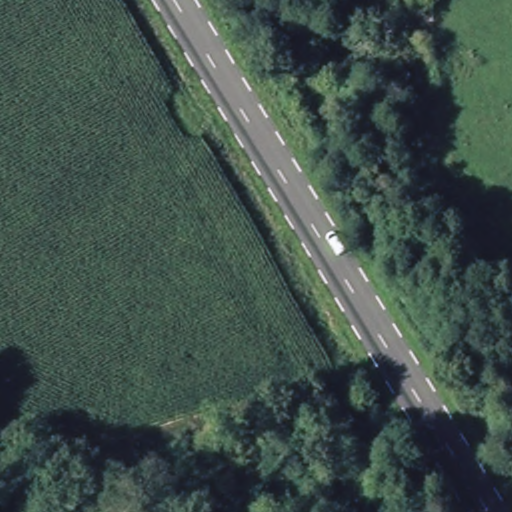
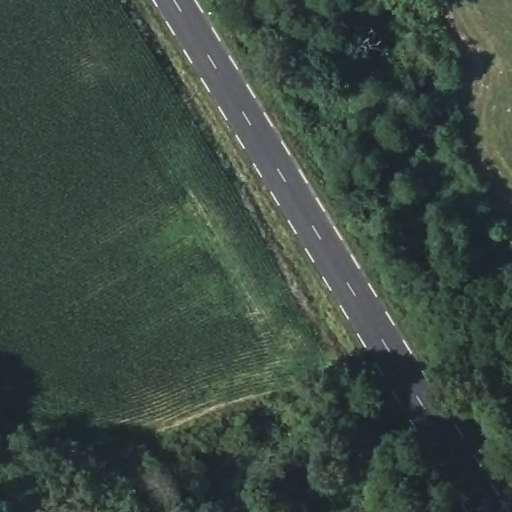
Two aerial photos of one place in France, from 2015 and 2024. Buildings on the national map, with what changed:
[]

